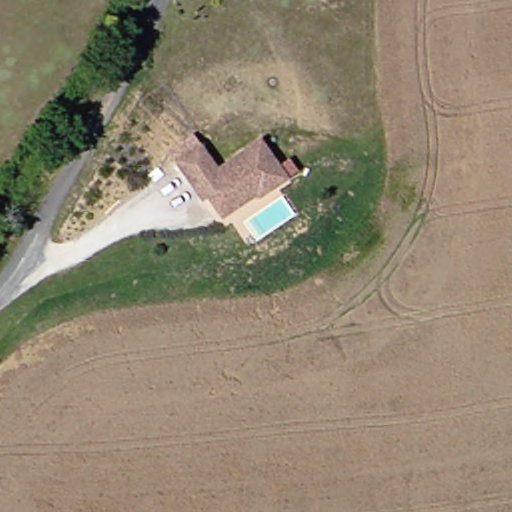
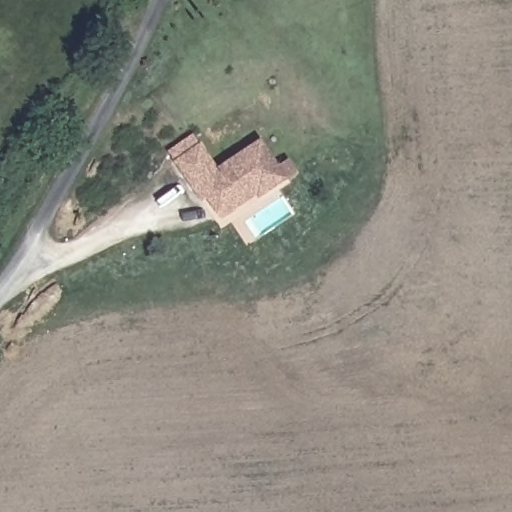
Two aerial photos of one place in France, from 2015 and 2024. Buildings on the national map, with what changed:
unchanged [(196,145),(212,170),(257,141),(282,182),(253,200),(246,189),(210,212),(191,184),(186,187),(170,161),(196,145)]

